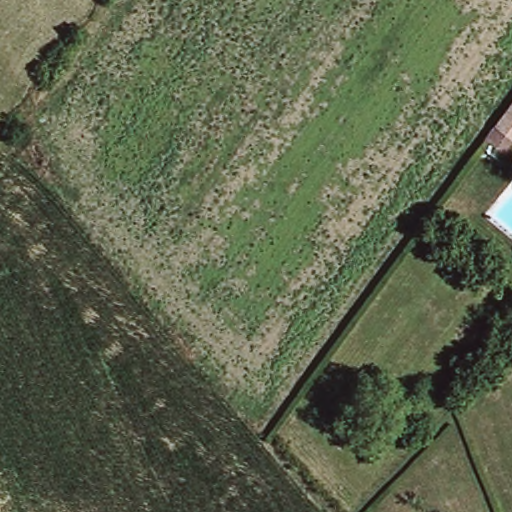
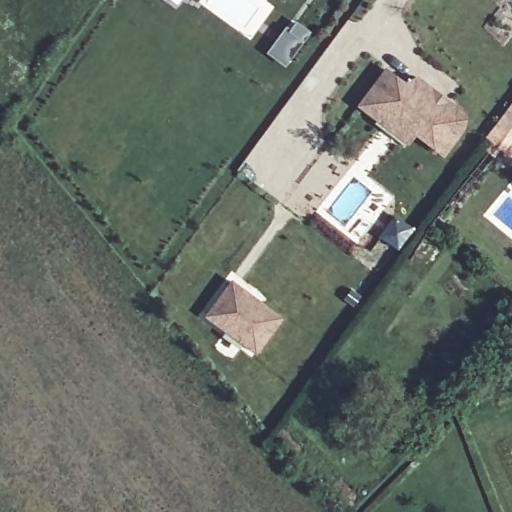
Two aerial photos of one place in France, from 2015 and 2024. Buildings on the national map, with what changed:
new [(468,113),(467,127),(444,156),(416,136),(410,145),(358,105),(385,67),(406,82),(418,76),(468,113)]
unchanged [(512,105),(512,144),(509,148),(491,133),(512,105)]
new [(391,217),(412,231),(397,253),(377,238),(391,217)]
new [(284,317),(256,356),(202,316),(230,278),(284,317)]

